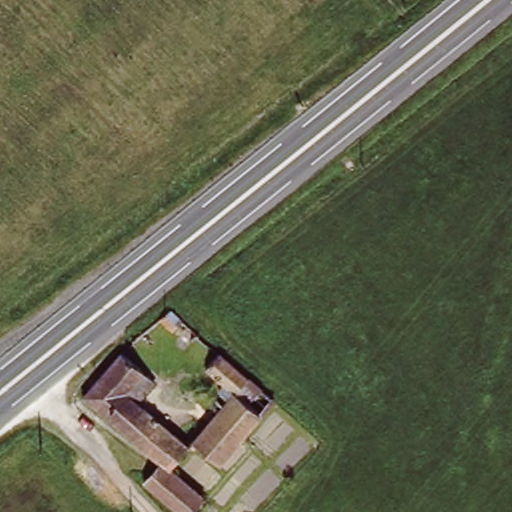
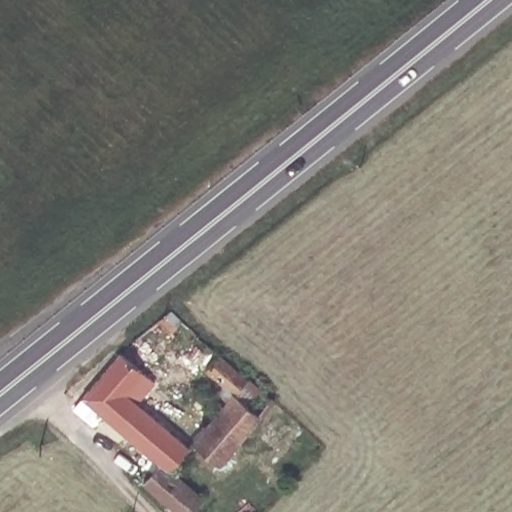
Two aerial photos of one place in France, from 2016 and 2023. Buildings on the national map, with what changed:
unchanged [(200,335),(190,345),(160,317),(169,307),(200,335)]
unchanged [(199,422),(205,428),(225,406),(215,396),(226,384),(209,367),(222,350),(280,401),(218,469),(192,447),(182,440),(199,422)]
unchanged [(157,383),(140,402),(182,440),(192,447),(170,473),(161,463),(84,398),(122,352),(157,383)]
unchanged [(170,473),(204,501),(195,512),(179,512),(142,483),(161,463),(170,473)]

